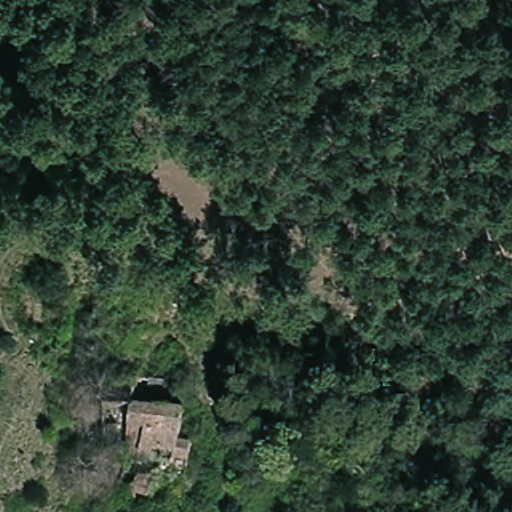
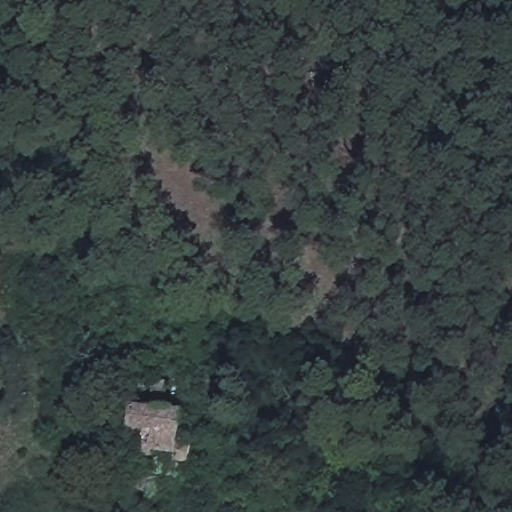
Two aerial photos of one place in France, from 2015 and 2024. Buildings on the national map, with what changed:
unchanged [(188,461),(175,459),(144,455),(142,464),(122,457),(138,409),(183,411),(178,438),(191,440),(188,461)]
unchanged [(149,507),(128,500),(139,471),(160,479),(149,507)]

